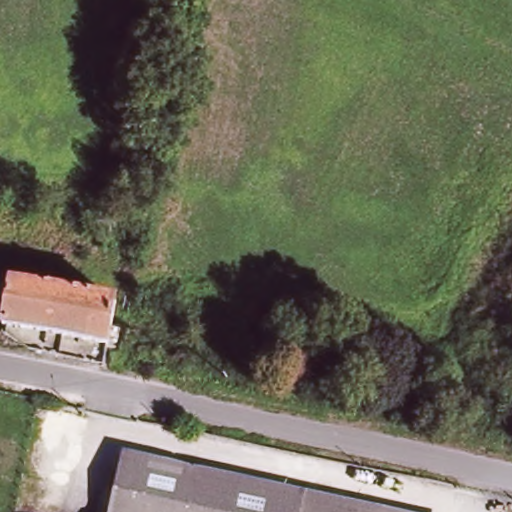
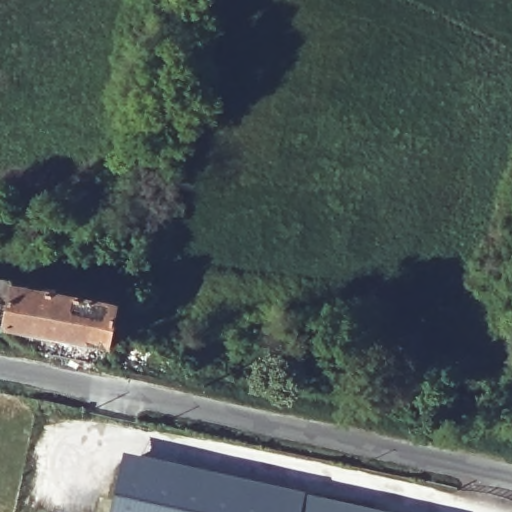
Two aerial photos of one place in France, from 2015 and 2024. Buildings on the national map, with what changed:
unchanged [(103,347),(0,331),(0,311),(4,285),(110,306),(110,307),(103,347)]
unchanged [(183,512),(113,512),(126,452),(170,462),(163,508),(183,512)]
unchanged [(394,512),(183,512),(163,508),(170,462),(385,510),(394,512)]

